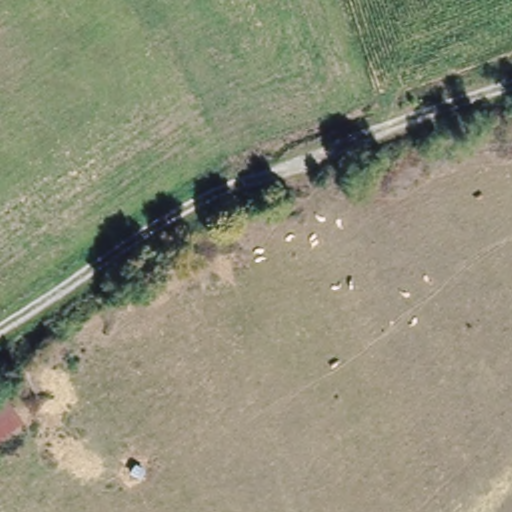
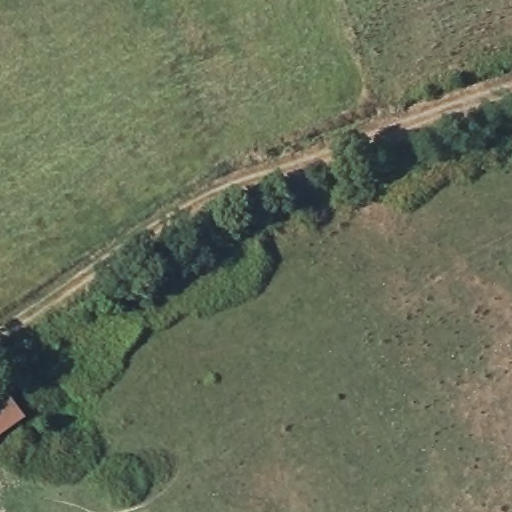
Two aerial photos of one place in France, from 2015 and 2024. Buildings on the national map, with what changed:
unchanged [(2,390),(20,418),(0,432),(0,391),(2,390)]

